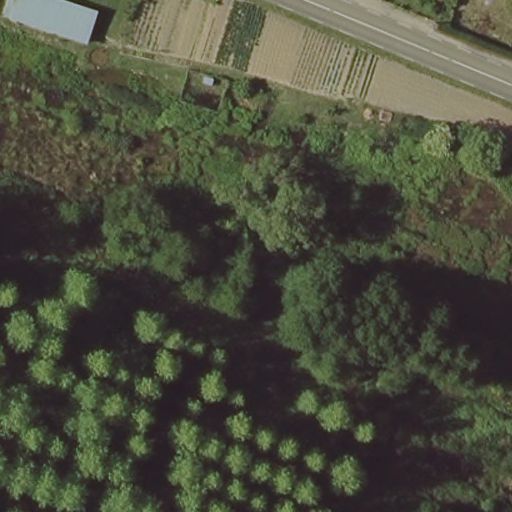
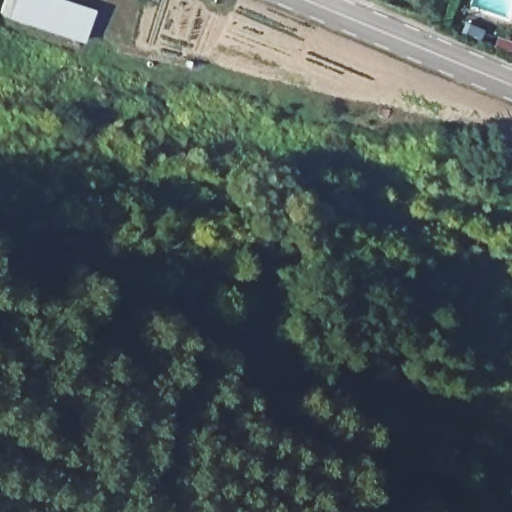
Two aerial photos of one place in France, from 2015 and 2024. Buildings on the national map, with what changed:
unchanged [(0,15),(0,0),(73,0),(97,7),(88,40),(0,15)]

